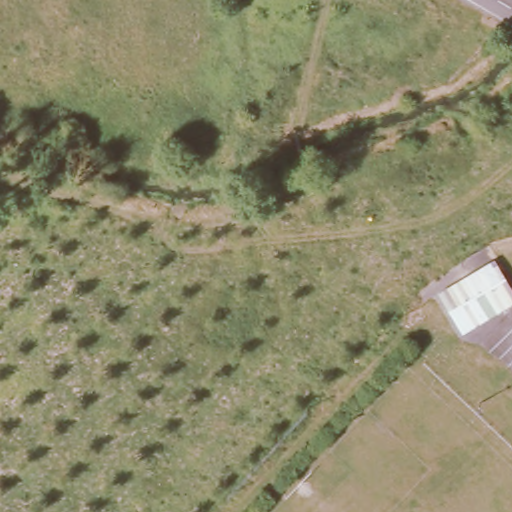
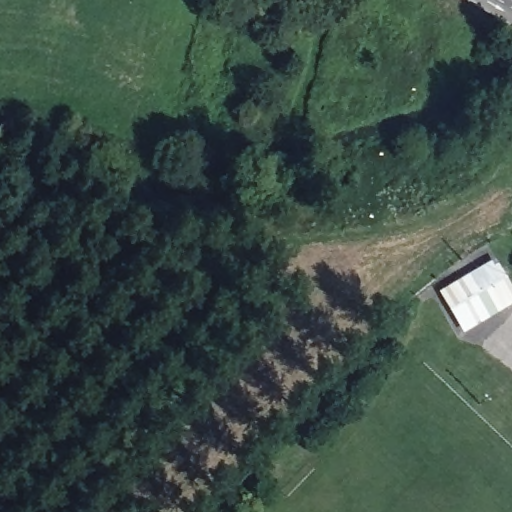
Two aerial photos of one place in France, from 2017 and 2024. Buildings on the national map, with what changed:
unchanged [(499,254),(512,280),(512,306),(464,335),(438,290),(499,254)]

